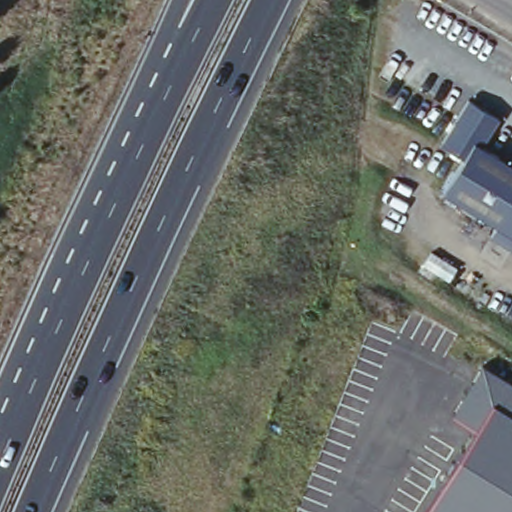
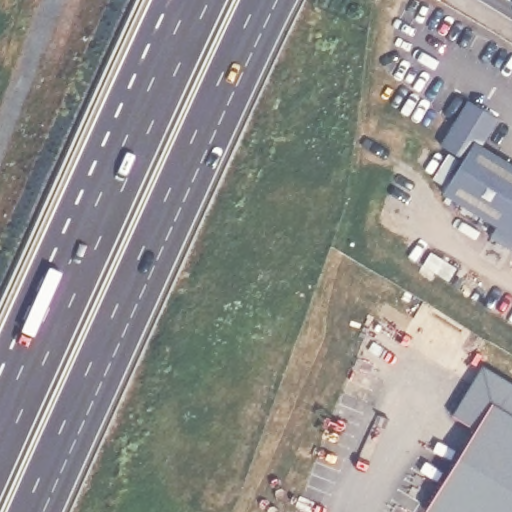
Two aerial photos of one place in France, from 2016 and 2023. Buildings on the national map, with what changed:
unchanged [(495,117),(478,144),(512,164),(512,237),(493,225),(487,236),(434,204),(459,157),(436,143),(463,97),(495,117)]
unchanged [(512,512),(427,512),(468,431),(448,417),(480,366),(512,386),(512,512)]

